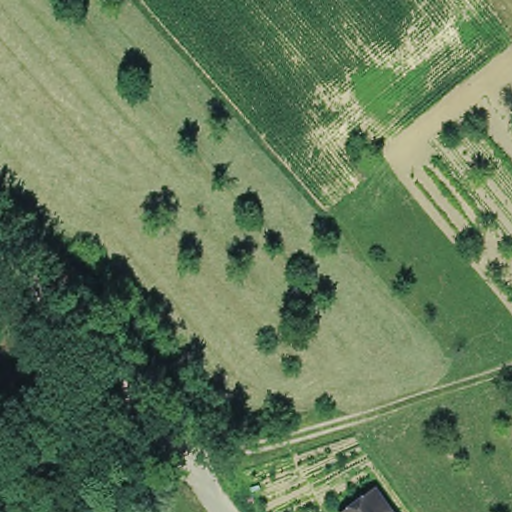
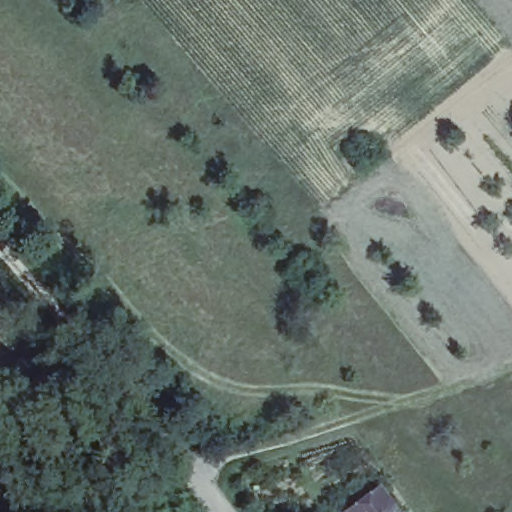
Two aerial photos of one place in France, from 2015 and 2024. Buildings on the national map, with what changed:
unchanged [(393,512),(345,512),(376,490),(393,512)]

